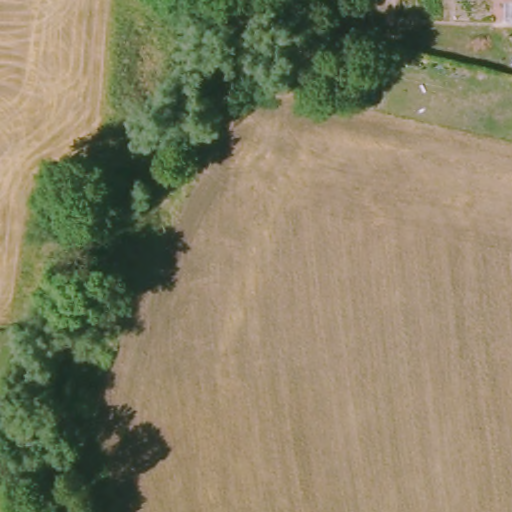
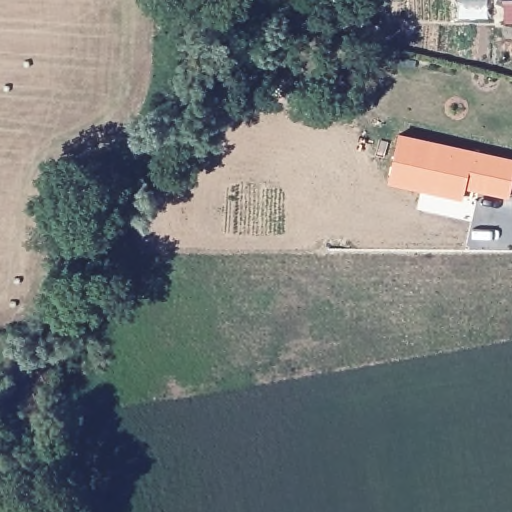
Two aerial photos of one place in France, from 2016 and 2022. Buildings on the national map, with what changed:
unchanged [(498,5),(498,0),(512,0),(512,5),(498,5)]
new [(401,135),(512,161),(512,188),(510,195),(480,188),(482,180),(467,176),(465,195),(390,180),(401,135)]

